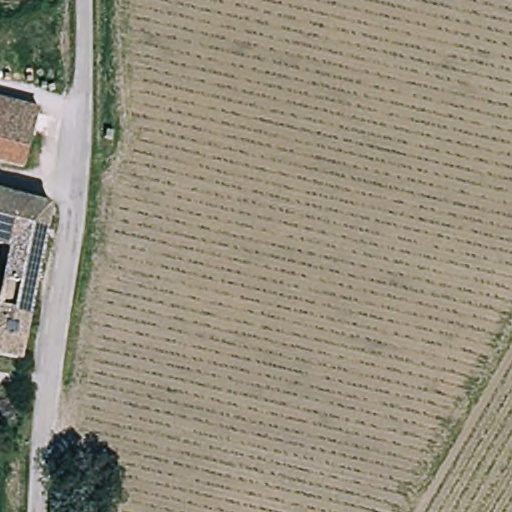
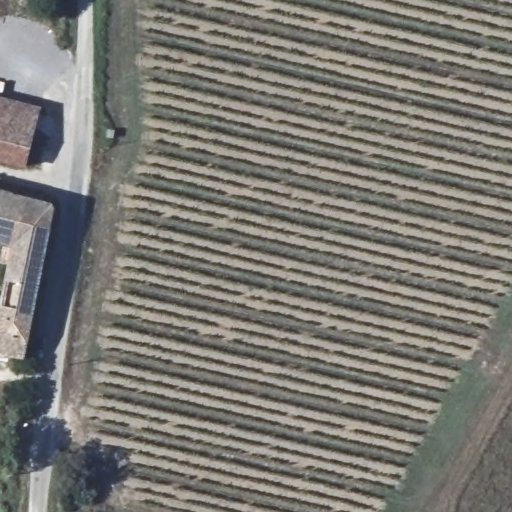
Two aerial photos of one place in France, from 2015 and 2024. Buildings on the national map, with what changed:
unchanged [(0,125),(0,102),(37,110),(32,132),(0,125)]
unchanged [(32,132),(22,171),(0,165),(0,125),(32,132)]
unchanged [(0,242),(0,191),(50,203),(41,250),(8,243),(0,242)]
unchanged [(20,356),(0,353),(0,288),(8,243),(41,250),(20,356)]

